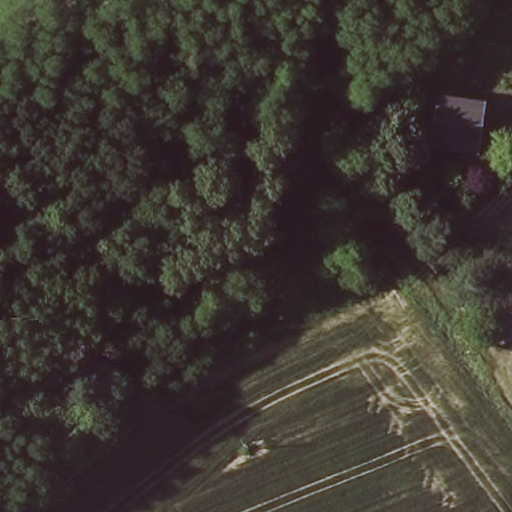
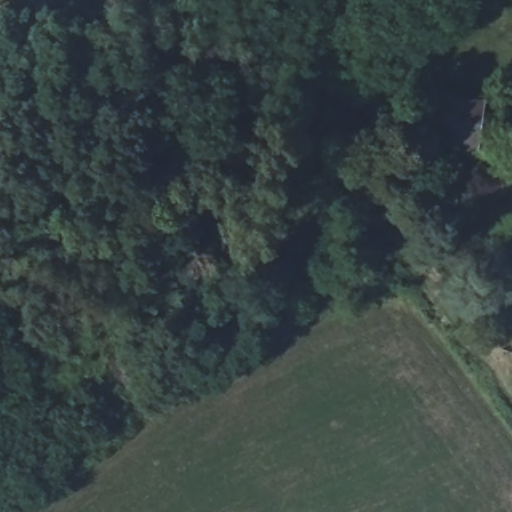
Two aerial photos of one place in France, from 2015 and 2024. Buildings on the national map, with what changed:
unchanged [(474,104),(472,122),(478,123),(475,147),(442,143),(445,118),(438,117),(440,100),(474,104)]

